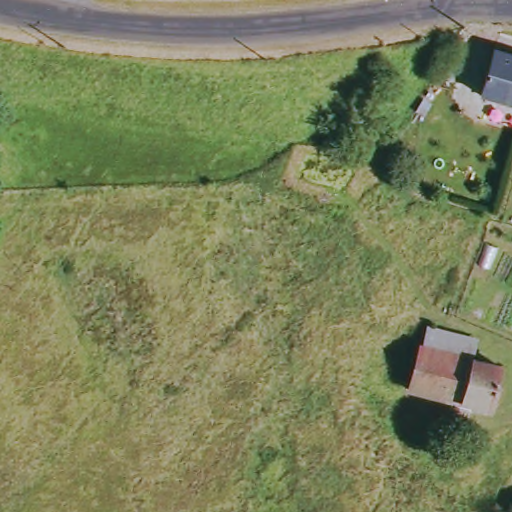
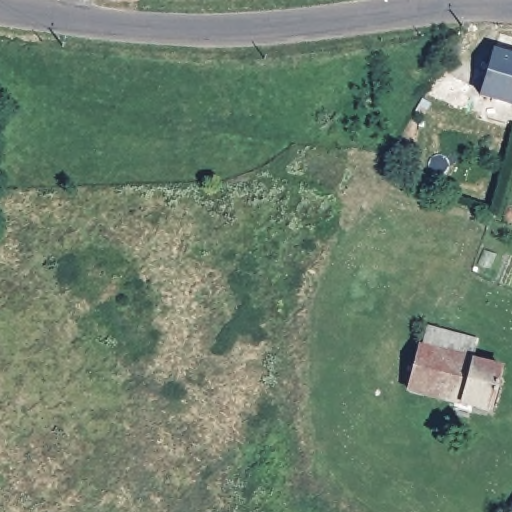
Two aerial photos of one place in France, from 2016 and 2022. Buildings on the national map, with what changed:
unchanged [(480,95),(494,52),(512,57),(512,105),(480,95)]
unchanged [(481,342),(477,361),(505,368),(494,410),(411,388),(423,346),(425,346),(431,328),(481,342)]

